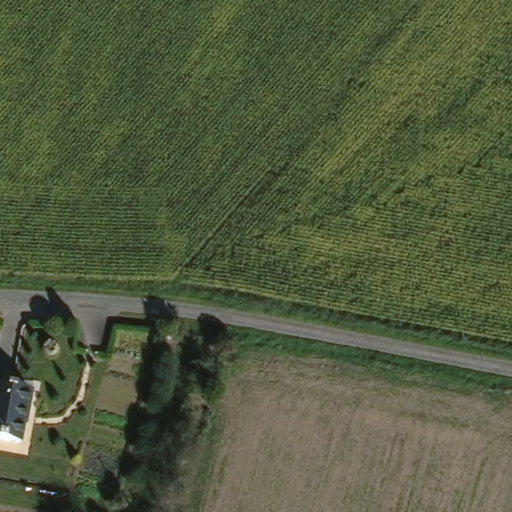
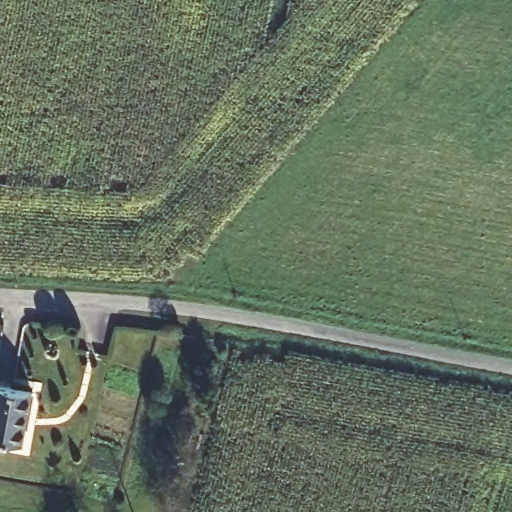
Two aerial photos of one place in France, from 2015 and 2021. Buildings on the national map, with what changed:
unchanged [(35,409),(32,410),(28,442),(0,437),(0,384),(37,390),(35,409)]

